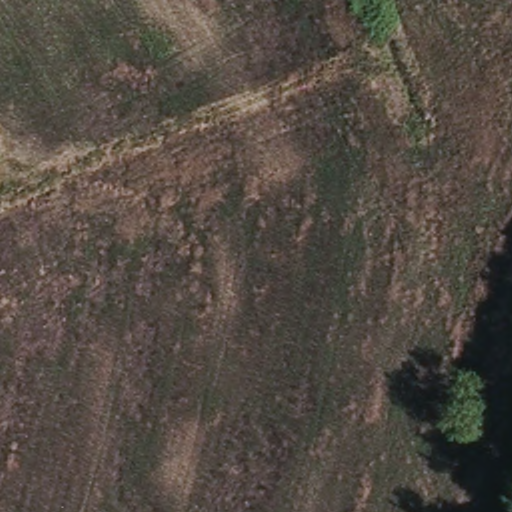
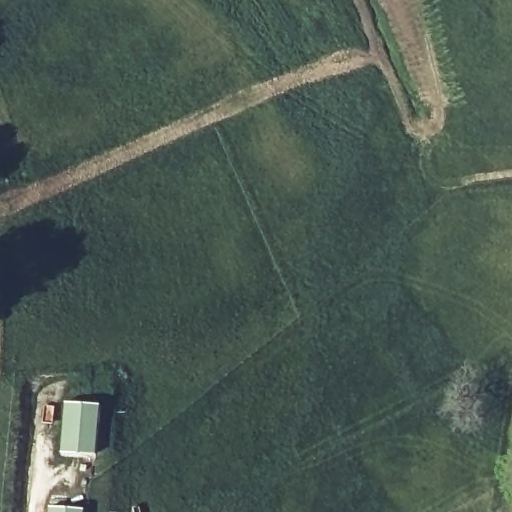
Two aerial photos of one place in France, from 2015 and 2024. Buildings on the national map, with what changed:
new [(100,405),(96,454),(62,452),(66,402),(100,405)]
new [(83,512),(50,512),(50,506),(84,510),(83,512)]

